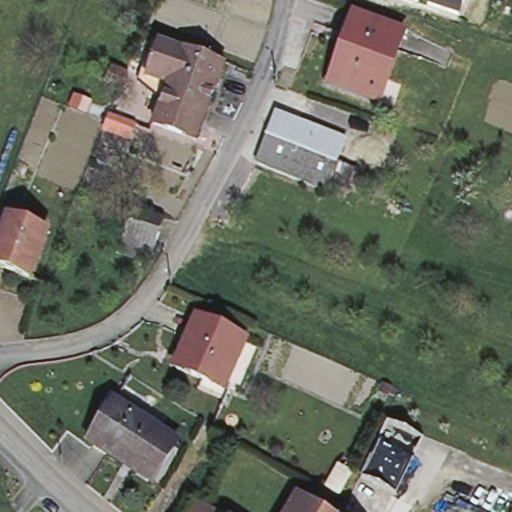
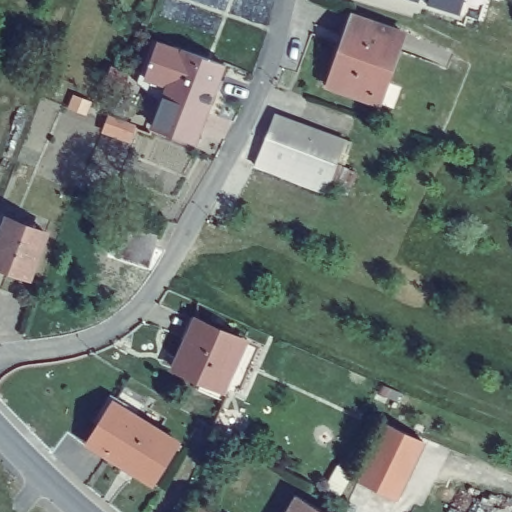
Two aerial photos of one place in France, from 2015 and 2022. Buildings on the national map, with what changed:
unchanged [(457,15),(409,0),(463,0),(457,15)]
unchanged [(402,32),(377,103),(326,84),(352,14),(402,32)]
unchanged [(162,36),(229,59),(200,136),(157,121),(172,80),(150,72),(162,36)]
unchanged [(278,108),(317,122),(309,145),(270,131),(278,108)]
unchanged [(309,145),(340,157),(329,185),(259,159),(270,131),(309,145)]
unchanged [(169,217),(160,243),(159,242),(153,259),(123,249),(137,206),(169,217)]
unchanged [(29,279),(0,269),(0,239),(7,218),(46,233),(29,279)]
unchanged [(250,336),(227,385),(179,363),(201,314),(250,336)]
unchanged [(177,442),(152,483),(88,443),(114,402),(177,442)]
unchanged [(394,492),(363,476),(389,423),(424,439),(394,492)]
unchanged [(352,473),(339,496),(325,488),(338,465),(352,473)]
unchanged [(302,496),(328,512),(292,512),(297,502),(302,496)]
unchanged [(200,512),(206,503),(219,512),(200,512)]

